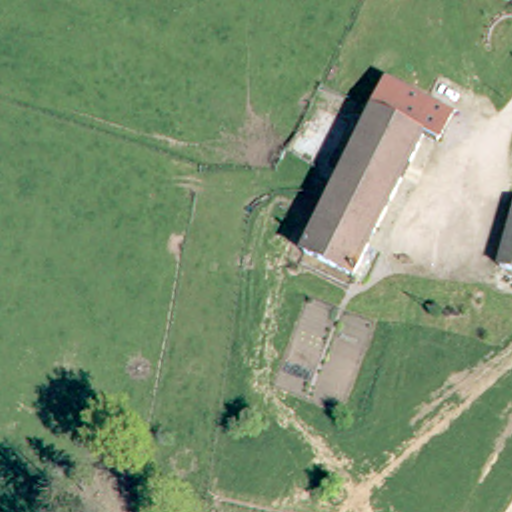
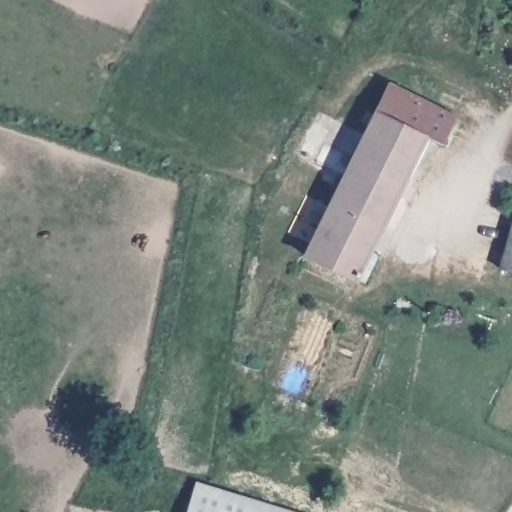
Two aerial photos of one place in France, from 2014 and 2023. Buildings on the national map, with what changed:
unchanged [(360,159),(400,87),(462,119),(445,152),(432,146),(409,186),(372,251),(385,258),(367,288),(306,256),(360,159)]
unchanged [(512,267),(512,270),(511,270),(512,267)]
new [(194,479),(300,512),(184,512),(194,479)]

